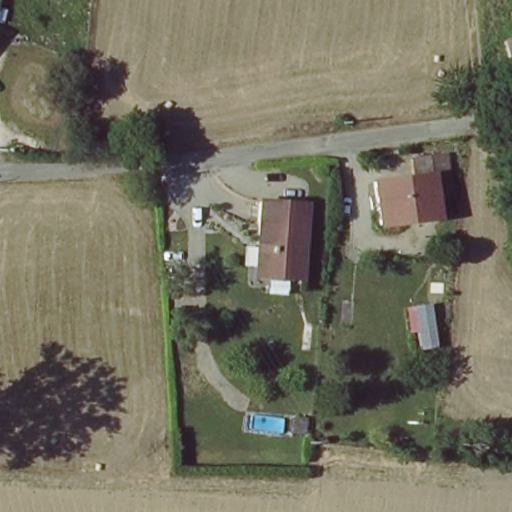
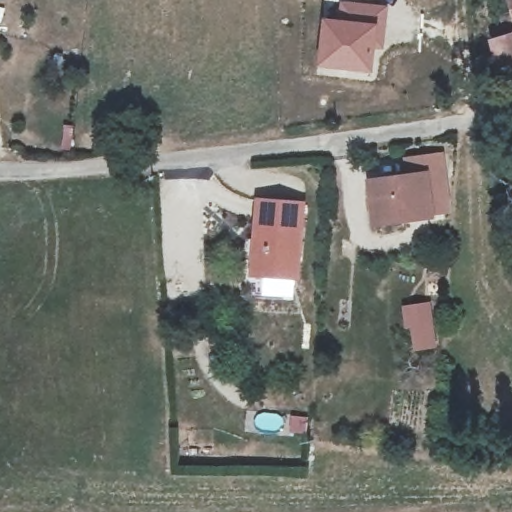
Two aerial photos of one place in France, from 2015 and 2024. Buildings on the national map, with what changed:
new [(322,17),(337,19),(340,0),(388,5),(383,50),(376,50),(374,74),(317,68),(322,17)]
unchanged [(501,16),(497,0),(512,0),(512,37),(497,41),(490,20),(501,16)]
unchanged [(497,41),(512,37),(512,86),(511,86),(497,41)]
unchanged [(441,192),(426,194),(430,221),(374,229),(368,186),(407,180),(405,160),(438,156),(441,192)]
unchanged [(255,241),(257,203),(301,205),(295,280),(262,278),(251,277),(255,241)]
unchanged [(435,341),(418,343),(412,301),(429,299),(435,341)]

